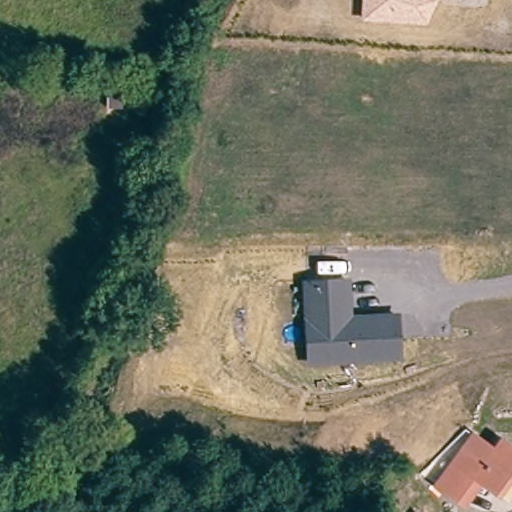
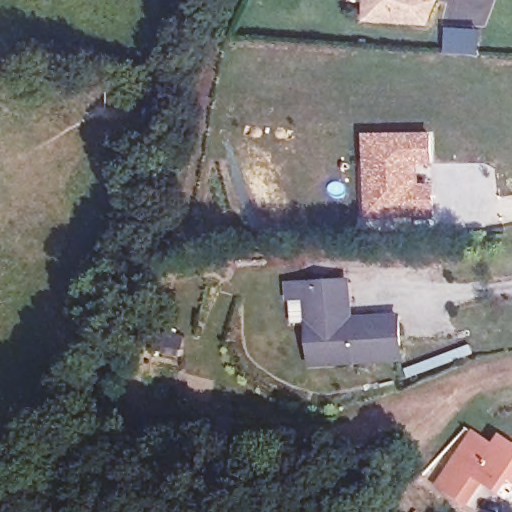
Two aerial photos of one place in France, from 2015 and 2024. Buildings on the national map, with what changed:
unchanged [(427,25),(361,20),(362,0),(441,0),(427,25)]
new [(362,132),(433,132),(433,166),(420,167),(420,182),(433,181),(433,217),(362,218),(362,132)]
unchanged [(404,360),(307,366),(302,279),(350,277),(352,313),(401,313),(404,360)]
unchanged [(476,477),(457,498),(435,478),(476,432),(495,449),(507,436),(512,441),(512,484),(504,476),(492,490),(472,473),(476,477)]

